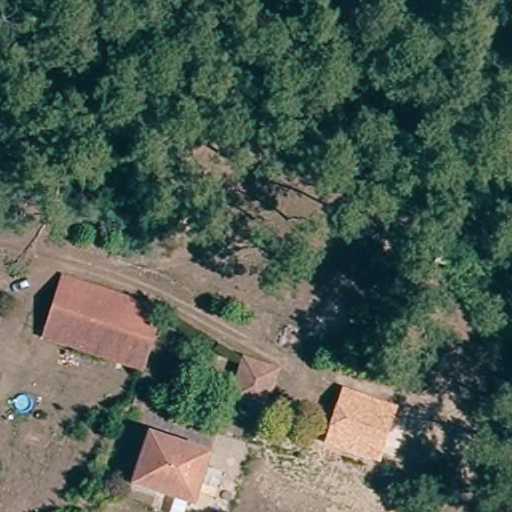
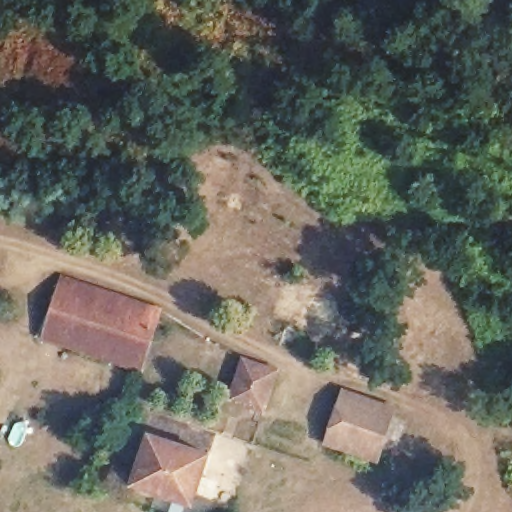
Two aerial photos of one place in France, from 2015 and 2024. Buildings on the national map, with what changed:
unchanged [(161,312),(136,371),(41,337),(61,276),(161,312)]
unchanged [(241,358),(277,371),(262,413),(226,401),(241,358)]
unchanged [(393,447),(380,442),(375,455),(329,440),(345,388),(391,401),(388,413),(402,417),(393,447)]
unchanged [(189,508),(133,484),(153,432),(210,456),(189,508)]

